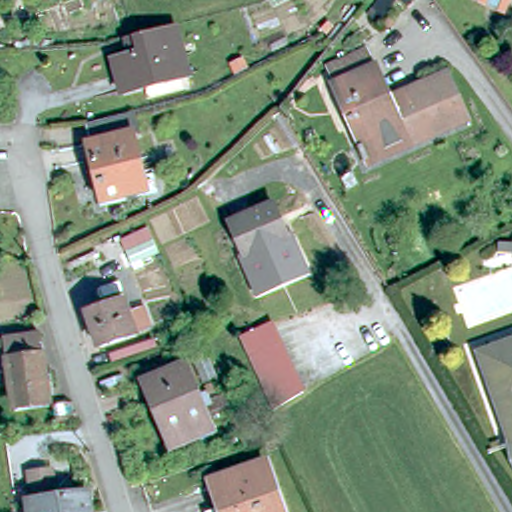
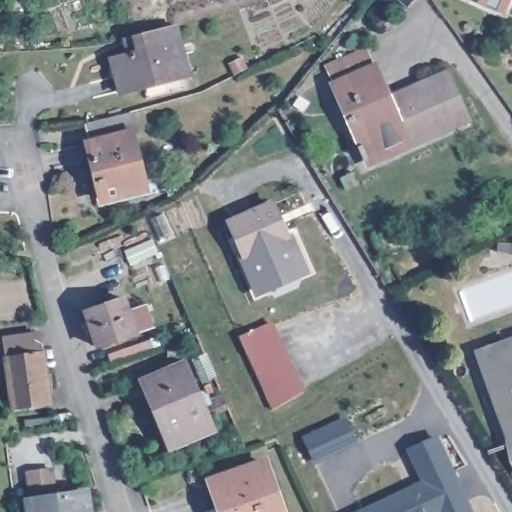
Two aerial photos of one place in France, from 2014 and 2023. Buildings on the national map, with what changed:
unchanged [(480,4),(482,0),(510,0),(506,10),(500,12),(480,4)]
unchanged [(149,84),(150,87),(127,93),(119,59),(134,55),(129,39),(141,36),(180,25),(192,73),(149,84)]
unchanged [(447,128),(407,145),(405,139),(363,158),(355,140),(359,139),(335,86),(377,67),(390,99),(411,90),(448,74),(465,113),(467,119),(447,128)]
unchanged [(150,199),(110,210),(95,154),(97,154),(92,135),(117,128),(137,123),(142,141),(135,143),(150,199)]
unchanged [(235,224),(275,203),(292,237),(297,247),(285,253),(280,243),(263,252),(268,261),(257,267),(252,257),(235,224)]
new [(132,265),(127,251),(122,239),(149,228),(154,239),(160,254),(132,265)]
unchanged [(100,346),(87,311),(125,299),(137,334),(100,346)]
unchanged [(309,389),(278,408),(245,337),(278,322),(309,389)]
unchanged [(20,416),(12,358),(1,360),(0,351),(0,347),(42,340),(53,411),(20,416)]
unchanged [(510,447),(478,355),(508,344),(510,349),(512,348),(512,464),(507,448),(510,447)]
unchanged [(144,383),(185,365),(210,422),(214,432),(174,449),(169,439),(144,383)]
new [(349,420),(359,443),(332,455),(319,461),(309,438),(322,432),(349,420)]
new [(428,484),(413,451),(440,440),(473,512),(365,512),(428,484)]
unchanged [(227,504),(217,477),(272,458),(290,512),(216,512),(215,508),(227,504)]
unchanged [(31,502),(35,502),(30,472),(52,470),(54,488),(59,487),(60,498),(86,494),(89,512),(32,512),(31,502)]

